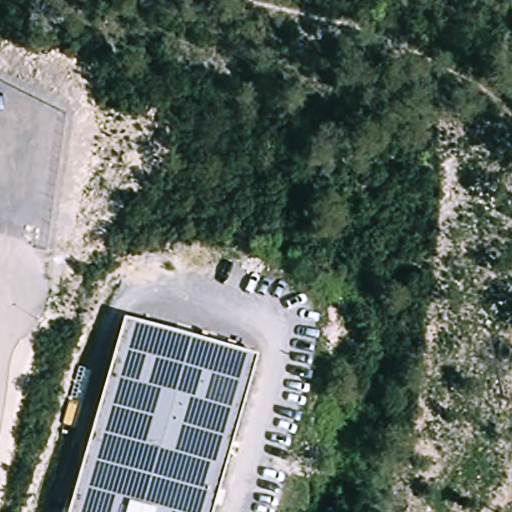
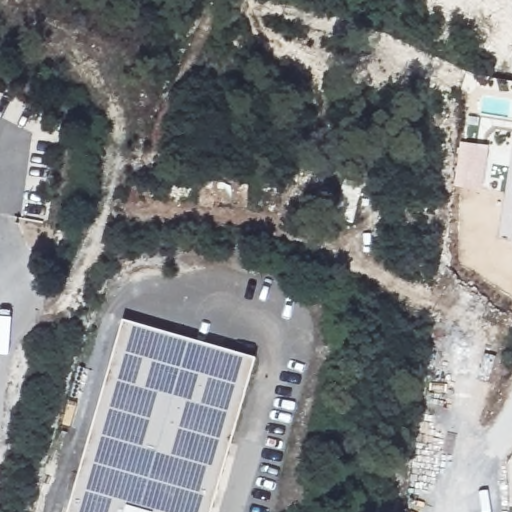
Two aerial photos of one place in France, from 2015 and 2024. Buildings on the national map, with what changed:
new [(483,190),(455,186),(461,142),(490,146),(483,190)]
unchanged [(128,315),(261,353),(216,512),(71,512),(81,480),(128,315)]

